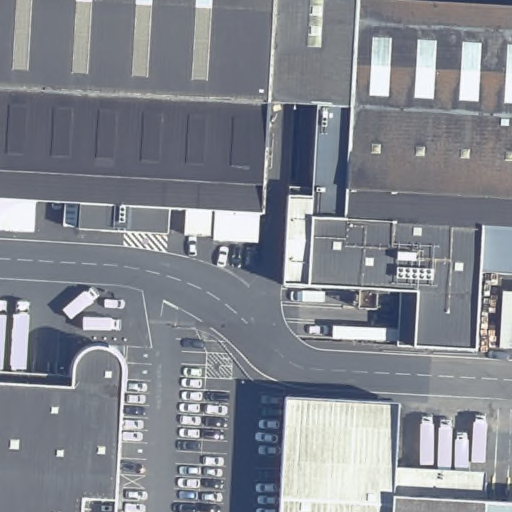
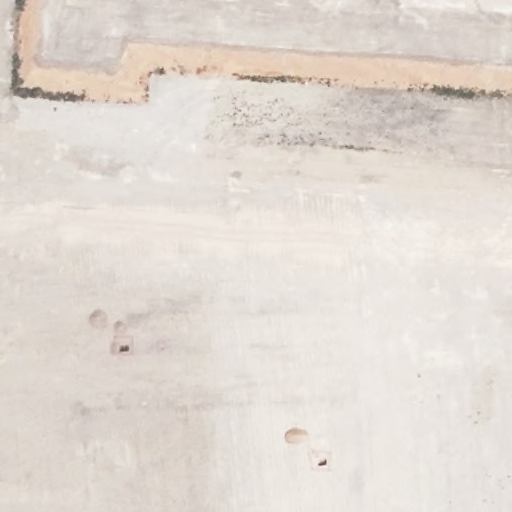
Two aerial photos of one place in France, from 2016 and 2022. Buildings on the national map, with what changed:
demolished [(268,106),(266,133),(278,133),(276,170),(264,170),(263,187),(262,216),(171,210),(83,203),(85,177),(35,174),(34,200),(32,233),(0,231),(0,0),(274,0),(268,106)]
demolished [(312,192),(318,109),(351,111),(512,120),(512,238),(498,237),(496,281),(490,359),(428,354),(431,300),(415,298),(283,289),(290,199),(312,201),(312,192)]
demolished [(76,385),(77,374),(77,371),(80,367),(84,363),(87,361),(91,359),(97,359),(102,360),(106,362),(109,364),(111,366),(114,370),(115,375),(115,387),(120,387),(112,512),(0,512),(0,383),(76,385)]
demolished [(399,407),(396,463),(395,478),(488,484),(488,508),(498,509),(512,510),(512,512),(277,512),(282,401),(399,407)]

